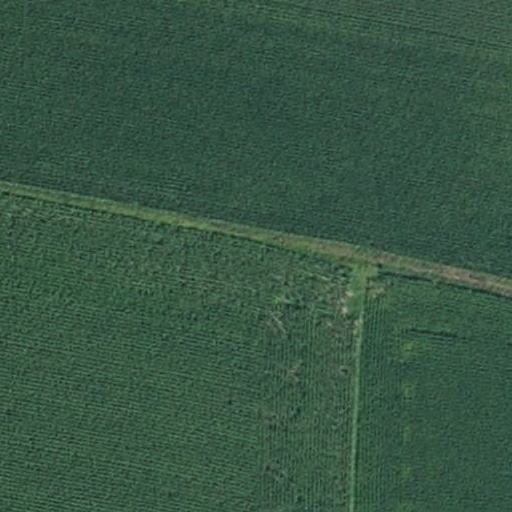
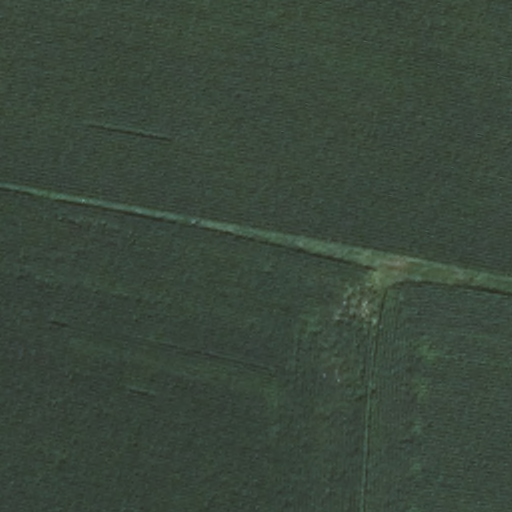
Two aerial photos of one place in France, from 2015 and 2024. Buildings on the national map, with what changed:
[]

